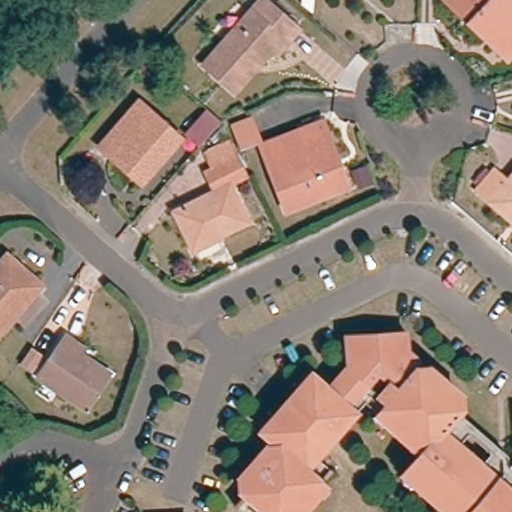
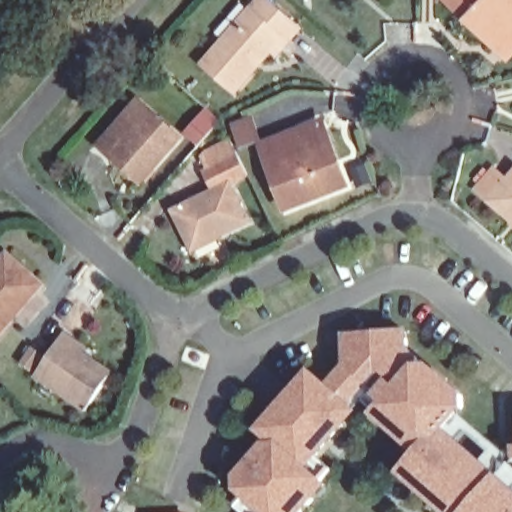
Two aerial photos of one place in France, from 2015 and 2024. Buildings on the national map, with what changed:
unchanged [(278,55),(272,51),(234,95),(202,69),(263,0),(268,0),(301,27),(278,55)]
unchanged [(475,21),(469,26),(442,0),(512,0),(512,56),(507,61),(492,46),(496,43),(475,21)]
unchanged [(131,165),(102,141),(141,95),(184,130),(156,161),(144,176),(131,165)]
unchanged [(288,213),(261,149),(307,131),(320,126),(328,149),(346,188),(288,213)]
unchanged [(249,180),(231,187),(250,226),(221,240),(217,235),(191,247),(172,212),(224,189),(205,151),(231,139),(249,180)]
unchanged [(496,170),(507,180),(512,174),(512,221),(479,190),(496,170)]
unchanged [(44,289),(0,338),(0,269),(9,259),(44,289)]
unchanged [(79,356),(107,376),(84,410),(35,374),(46,359),(62,336),(72,343),(83,351),(79,356)]
unchanged [(242,509),(250,499),(243,484),(267,456),(280,455),(281,453),(266,439),(317,381),(329,391),(351,375),(351,343),(394,340),(407,340),(407,348),(417,356),(417,365),(429,366),(440,376),(460,394),(462,406),(462,414),(480,429),(512,446),(512,512),(432,512),(416,498),(401,484),(408,477),(419,464),(410,455),(381,428),(372,421),(361,411),(313,466),(328,479),(313,494),(318,499),(312,505),(305,512),(245,512),(242,509)]
unchanged [(39,358),(29,371),(20,365),(30,351),(39,358)]

